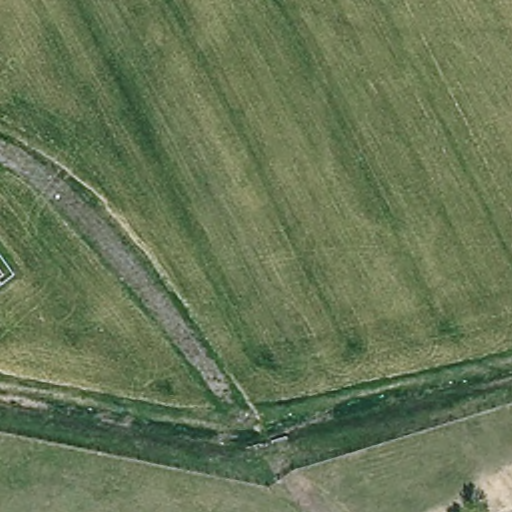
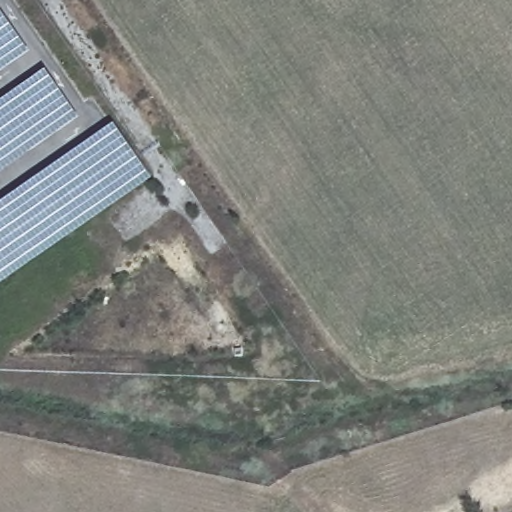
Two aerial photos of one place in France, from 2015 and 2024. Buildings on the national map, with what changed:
new [(0,66),(0,0),(3,0),(33,42),(0,66)]
new [(85,112),(0,173),(0,99),(50,63),(85,112)]
new [(163,171),(0,289),(0,207),(125,117),(163,171)]

